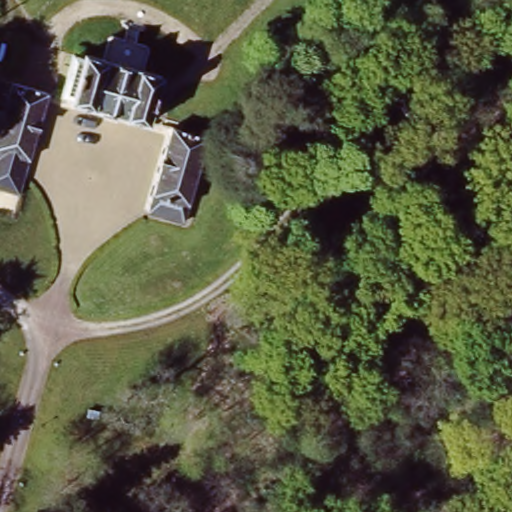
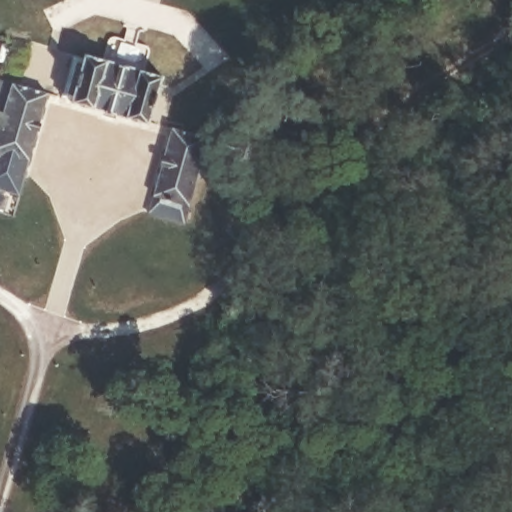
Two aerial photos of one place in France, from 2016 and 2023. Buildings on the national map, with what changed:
unchanged [(83,59),(155,73),(145,123),(72,109),(83,59)]
unchanged [(0,97),(3,84),(59,95),(42,174),(0,165),(0,97)]
unchanged [(181,209),(150,202),(175,111),(201,117),(182,206),(181,209)]

